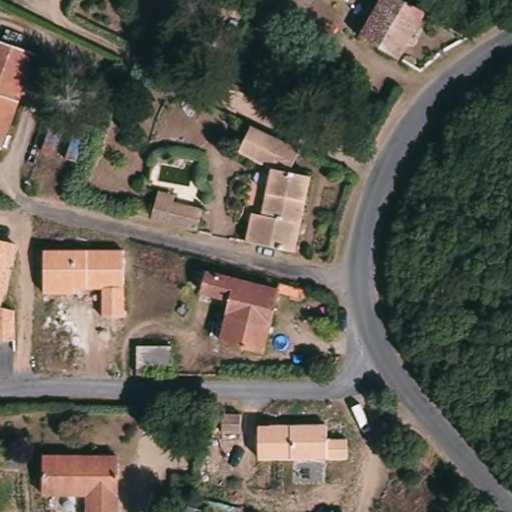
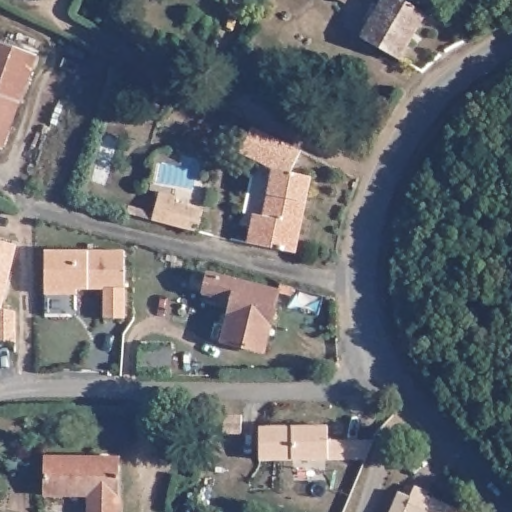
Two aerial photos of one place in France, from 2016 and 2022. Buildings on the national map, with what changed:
unchanged [(341,0),(346,0),(345,2),(341,0)]
unchanged [(399,59),(359,37),(380,0),(404,0),(426,12),(399,59)]
unchanged [(0,148),(0,41),(36,54),(1,149),(0,148)]
unchanged [(290,172),(310,176),(295,252),(246,242),(252,213),(262,215),(271,168),(239,152),(252,126),(301,149),(290,172)]
unchanged [(159,190),(176,195),(175,201),(203,209),(197,231),(152,219),(156,200),(159,190)]
unchanged [(2,307),(0,306),(0,239),(18,243),(2,307)]
unchanged [(124,317),(102,317),(101,289),(75,289),(75,293),(42,294),(42,250),(123,250),(124,317)]
unchanged [(268,351),(226,340),(237,299),(207,291),(211,272),(284,290),(268,351)]
unchanged [(139,374),(139,346),(171,346),(171,374),(139,374)]
unchanged [(246,409),(245,428),(226,427),(227,408),(246,409)]
unchanged [(348,460),(257,460),(257,424),(327,424),(327,439),(347,439),(348,460)]
unchanged [(119,453),(118,512),(86,512),(86,489),(43,488),(44,452),(119,453)]
new [(399,493),(412,497),(416,488),(427,492),(426,496),(463,512),(391,512),(399,493)]

